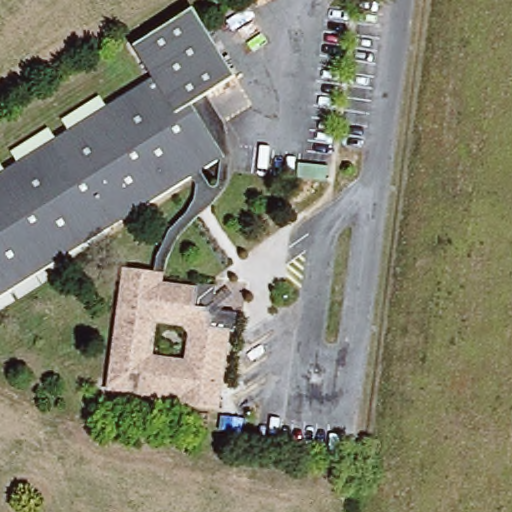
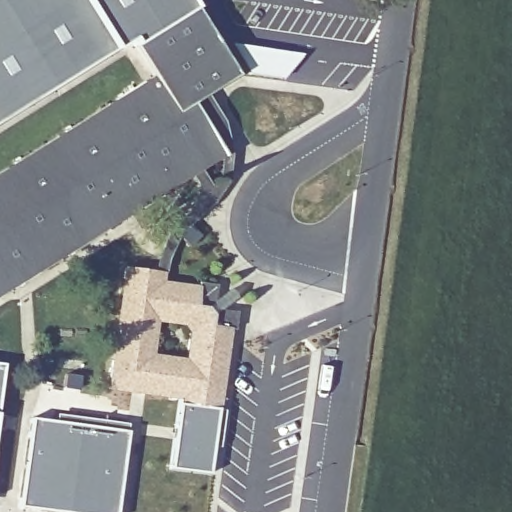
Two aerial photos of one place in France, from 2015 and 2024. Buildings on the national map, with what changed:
new [(136,47),(134,44),(133,45),(129,39),(111,50),(0,120),(0,0),(186,0),(194,12),(136,47)]
unchanged [(0,171),(151,77),(136,47),(197,10),(239,77),(193,106),(226,160),(0,300),(0,171)]
unchanged [(213,314),(236,317),(236,334),(225,332),(217,398),(225,399),(224,410),(187,406),(185,395),(124,389),(123,393),(110,390),(111,376),(106,376),(108,359),(114,359),(123,268),(165,272),(164,285),(194,288),(194,280),(216,284),(213,314)]
new [(170,469),(179,406),(187,406),(215,409),(208,473),(170,469)]
new [(30,422),(126,435),(115,512),(28,512),(17,511),(30,422)]

